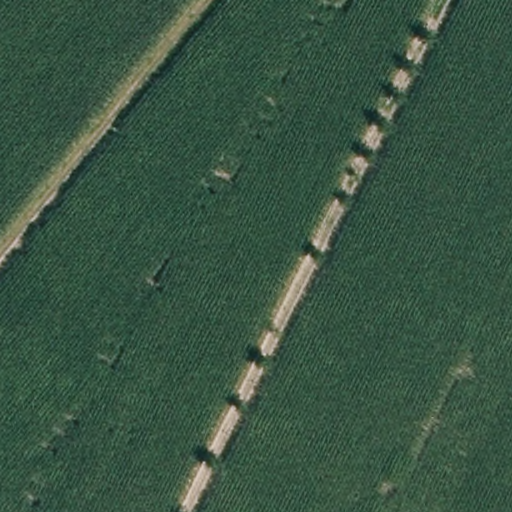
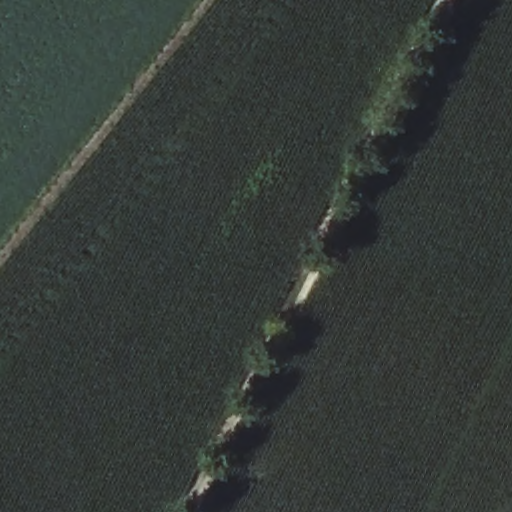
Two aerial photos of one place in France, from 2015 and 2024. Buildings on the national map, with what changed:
[]

